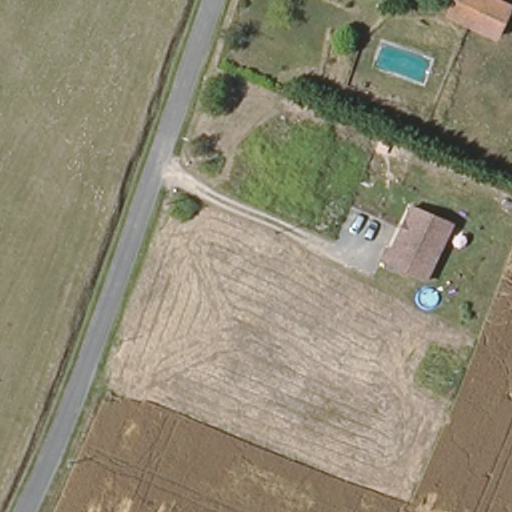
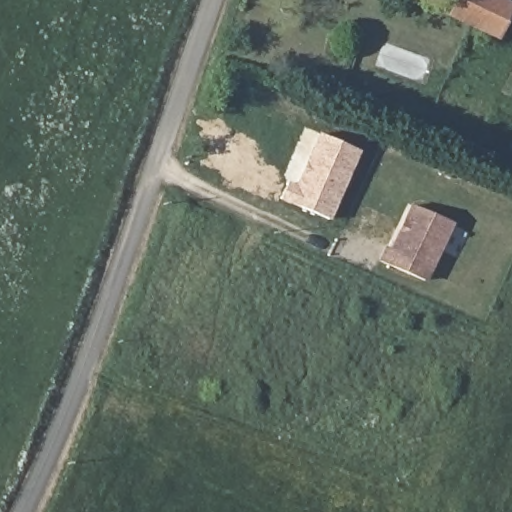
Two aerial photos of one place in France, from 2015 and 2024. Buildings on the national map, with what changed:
unchanged [(499,9),(505,15),(492,44),(449,22),(457,0),(502,0),(499,9)]
new [(319,133),(359,151),(329,219),(291,202),(290,205),(279,200),(287,182),(296,186),(319,133)]
unchanged [(428,277),(385,258),(391,245),(395,247),(415,202),(455,218),(428,277)]

